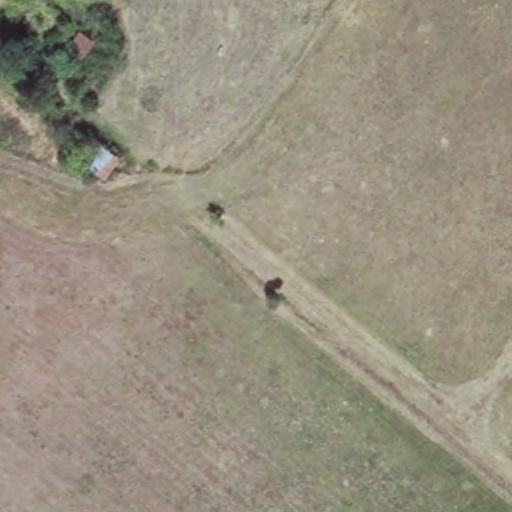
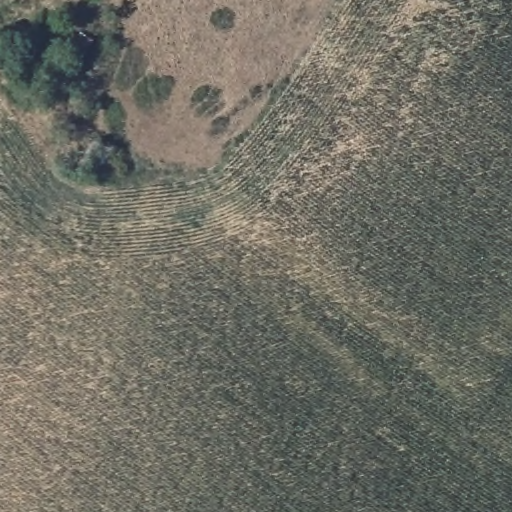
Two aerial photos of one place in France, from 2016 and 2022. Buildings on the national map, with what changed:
unchanged [(81,31),(107,49),(91,72),(81,86),(55,69),(81,31)]
unchanged [(125,165),(114,181),(108,188),(81,167),(98,145),(125,165)]

